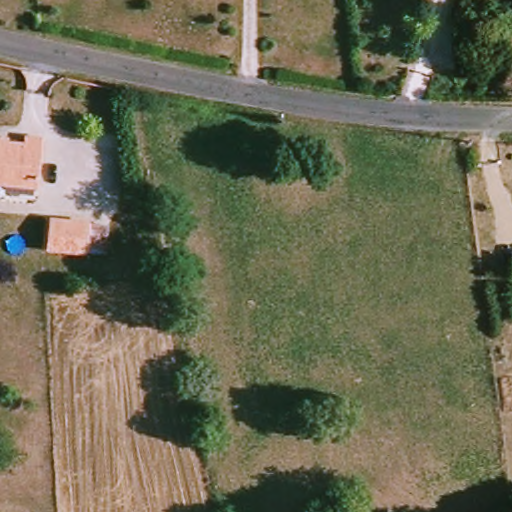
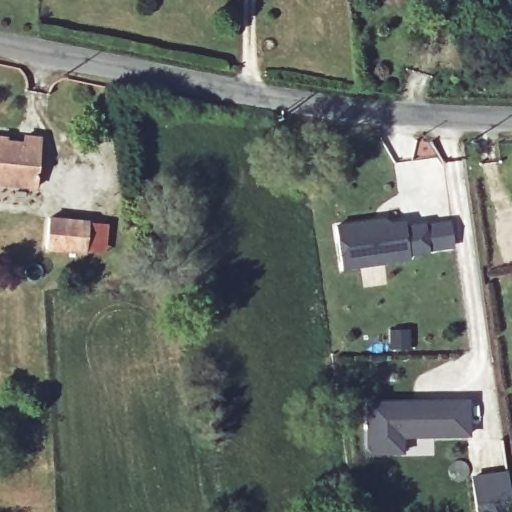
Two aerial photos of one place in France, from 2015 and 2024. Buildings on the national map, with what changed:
unchanged [(0,184),(0,143),(26,145),(27,137),(44,139),(40,189),(0,184)]
new [(406,215),(407,222),(427,219),(433,252),(412,254),(413,260),(342,270),(334,226),(406,215)]
unchanged [(104,220),(101,249),(62,245),(64,217),(104,220)]
new [(365,403),(469,399),(470,437),(405,439),(405,455),(366,454),(365,403)]
new [(512,508),(512,512),(478,512),(473,474),(507,470),(512,508)]

